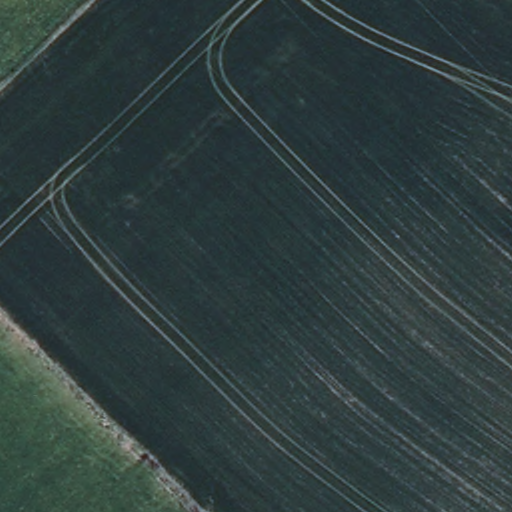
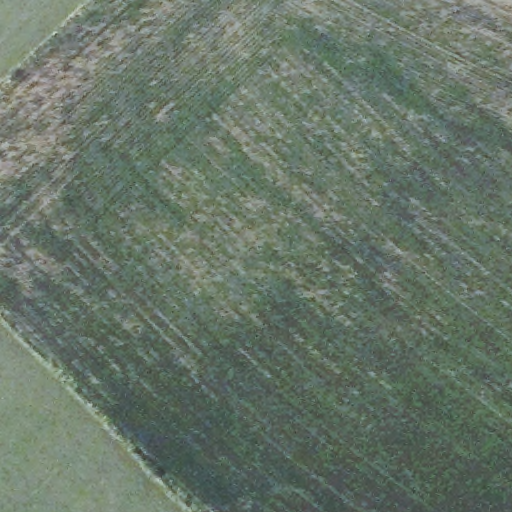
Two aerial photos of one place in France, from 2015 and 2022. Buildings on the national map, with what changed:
[]

